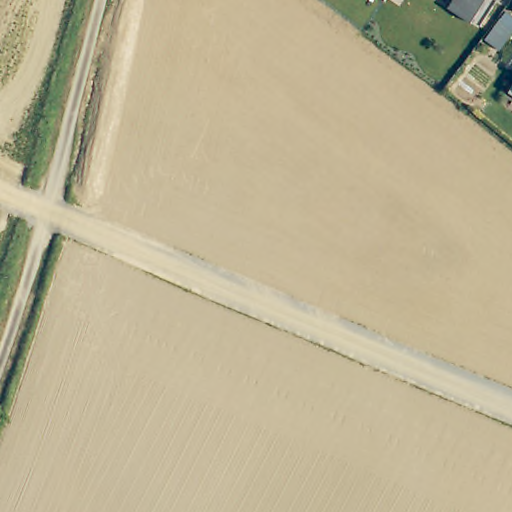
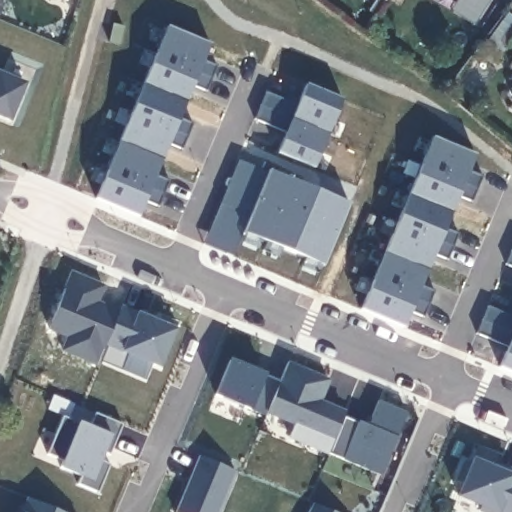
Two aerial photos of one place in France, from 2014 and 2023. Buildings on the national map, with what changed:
unchanged [(455,0),(488,0),(473,23),(449,9),(455,0)]
unchanged [(504,55),(493,47),(512,21),(512,45),(504,55)]
new [(214,63),(229,70),(219,95),(204,89),(190,121),(205,127),(194,154),(179,147),(167,178),(182,185),(171,211),(156,204),(149,221),(106,203),(178,30),(220,48),(214,63)]
new [(0,116),(0,72),(28,84),(12,121),(0,116)]
new [(279,153),(288,132),(256,120),(268,92),(299,105),(308,84),(387,116),(359,186),(279,153)]
new [(419,197),(411,194),(434,136),(478,153),(471,170),(484,176),(474,201),(461,195),(454,211),(462,214),(455,230),(470,237),(459,263),(444,257),(431,287),(447,294),(436,320),(421,314),(414,330),(371,312),(419,197)]
new [(245,231),(235,256),(205,244),(240,159),(270,172),(270,169),(352,203),(326,265),(245,231)]
new [(507,263),(512,251),(512,265),(507,263)]
new [(502,366),(510,345),(479,332),(490,304),(512,314),(512,371),(502,366)]
new [(160,368),(120,351),(103,345),(119,305),(136,312),(178,328),(160,368)]
new [(382,473),(287,440),(294,424),(264,412),(284,362),(328,379),(319,400),(346,411),(344,415),(367,421),(374,400),(407,413),(382,473)]
new [(108,453),(104,451),(100,459),(110,465),(98,491),(78,483),(80,475),(60,467),(63,461),(49,456),(66,416),(79,420),(90,425),(94,412),(121,423),(108,453)]
new [(479,507),(454,498),(473,455),(475,445),(499,454),(496,461),(512,468),(512,512),(477,512),(479,507)]
new [(218,512),(178,512),(200,455),(234,469),(218,512)]
new [(314,503),(331,512),(309,512),(314,503)]

